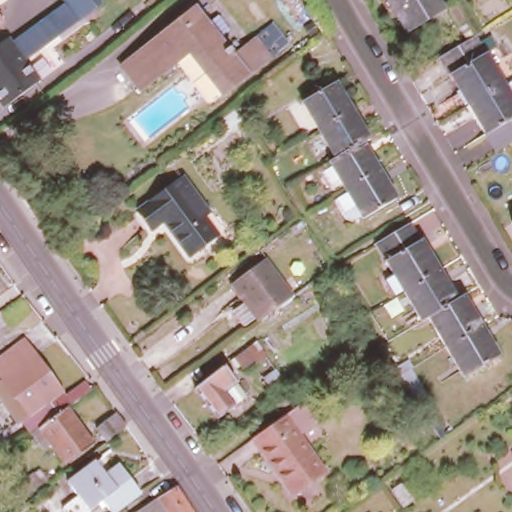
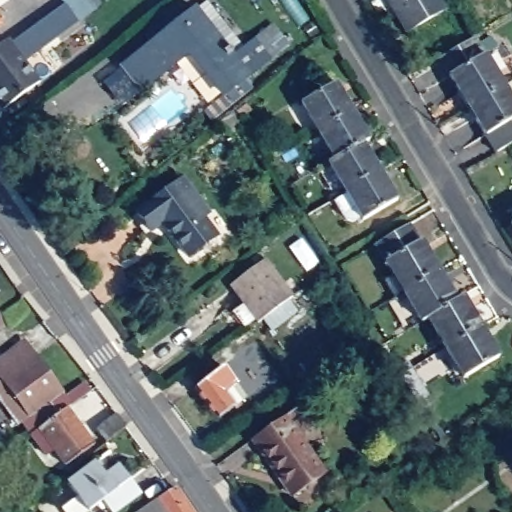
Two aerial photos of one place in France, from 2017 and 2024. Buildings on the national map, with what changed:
unchanged [(404,29),(386,0),(436,0),(440,7),(404,29)]
unchanged [(21,61),(9,44),(62,5),(74,21),(21,61)]
unchanged [(125,64),(197,6),(249,72),(225,92),(192,49),(144,86),(125,64)]
unchanged [(0,22),(0,19),(2,21),(0,22)]
unchanged [(505,89),(472,108),(444,60),(478,40),(505,89)]
unchanged [(19,112),(7,97),(5,96),(0,90),(0,51),(9,44),(21,61),(44,92),(19,112)]
unchanged [(300,101),(336,81),(352,109),(317,130),(300,101)]
unchanged [(511,149),(500,156),(472,108),(505,89),(512,85),(512,149),(511,149)]
unchanged [(317,130),(352,109),(369,137),(362,142),(335,159),(317,130)]
unchanged [(379,170),(342,191),(326,164),(335,159),(362,142),(379,170)]
unchanged [(395,198),(360,219),(342,191),(379,170),(395,198)]
unchanged [(161,218),(149,227),(135,208),(180,176),(207,211),(202,215),(215,235),(187,255),(161,218)]
unchanged [(438,265),(401,287),(392,292),(382,277),(392,271),(374,239),(410,218),(438,265)]
unchanged [(264,256),(291,294),(255,320),(252,316),(241,324),(230,309),(241,301),(228,282),(264,256)]
unchanged [(401,287),(438,265),(455,294),(427,311),(419,317),(401,287)]
unchanged [(479,321),(445,342),(427,311),(455,294),(462,290),(479,321)]
unchanged [(5,331),(2,326),(0,327),(0,312),(15,302),(25,317),(5,331)]
unchanged [(496,352),(462,371),(445,342),(479,321),(496,352)]
unchanged [(17,423),(0,400),(0,358),(24,341),(65,397),(90,378),(97,385),(65,407),(29,433),(19,421),(17,423)]
unchanged [(210,372),(250,343),(280,382),(277,386),(273,388),(252,361),(229,377),(242,397),(212,418),(190,389),(181,375),(202,360),(210,372)]
unchanged [(317,420),(300,433),(327,473),(295,495),(255,438),(305,404),(317,420)]
unchanged [(92,443),(63,464),(48,443),(40,449),(29,433),(65,407),(92,443)]
unchanged [(95,429),(117,414),(126,426),(105,442),(95,429)]
unchanged [(140,493),(112,512),(108,512),(100,500),(87,510),(65,481),(94,462),(104,474),(118,464),(140,493)]
unchanged [(45,479),(14,502),(5,491),(37,468),(45,479)]
unchanged [(144,506),(172,489),(175,487),(192,512),(134,512),(144,506)]

